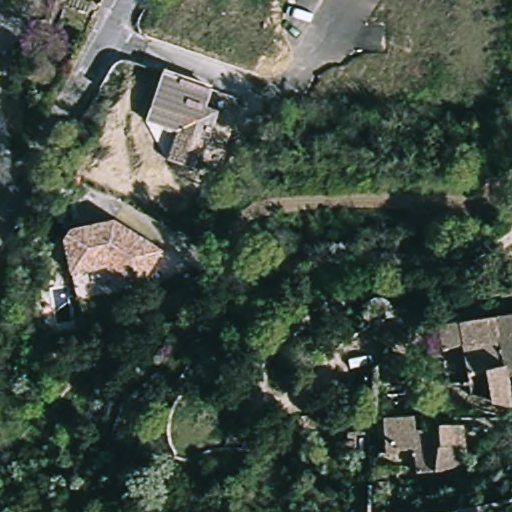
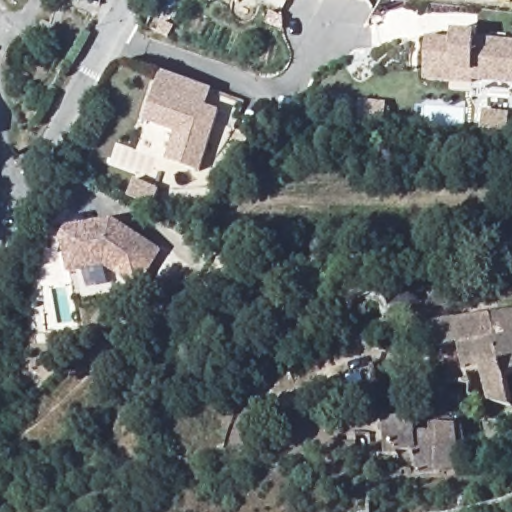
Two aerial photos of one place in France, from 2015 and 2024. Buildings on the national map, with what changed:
new [(409,25),(434,30),(436,22),(458,26),(457,31),(508,41),(500,80),(449,71),(448,74),(402,65),(403,59),(409,25)]
unchanged [(207,107),(220,110),(201,174),(168,161),(176,131),(147,120),(166,72),(211,89),(207,107)]
unchanged [(159,238),(145,277),(108,264),(77,280),(61,249),(64,240),(106,219),(159,238)]
unchanged [(509,397),(499,393),(480,385),(476,377),(469,376),(463,374),(456,347),(434,350),(431,325),(461,321),(512,310),(512,389),(509,397)]
unchanged [(417,415),(418,423),(456,420),(461,465),(418,470),(418,453),(389,454),(386,417),(417,415)]

